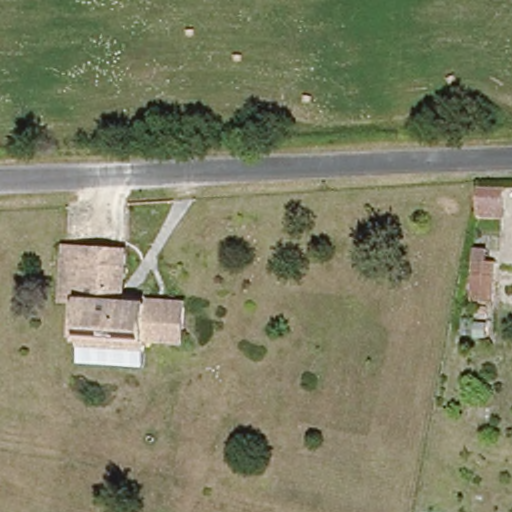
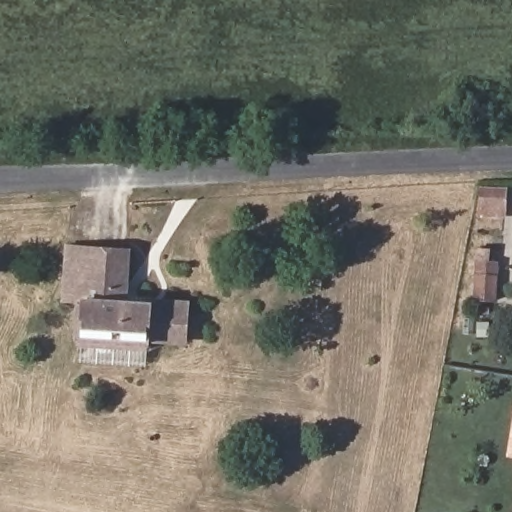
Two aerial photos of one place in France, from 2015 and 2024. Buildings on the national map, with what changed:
unchanged [(503,212),(482,211),(485,184),(506,185),(503,212)]
unchanged [(181,333),(167,333),(142,332),(140,345),(75,341),(77,297),(58,297),(60,244),(122,247),(117,298),(143,300),(169,301),(182,301),(181,333)]
unchanged [(478,251),(499,265),(496,306),(472,306),(478,251)]
new [(512,425),(512,458),(507,457),(512,425)]

